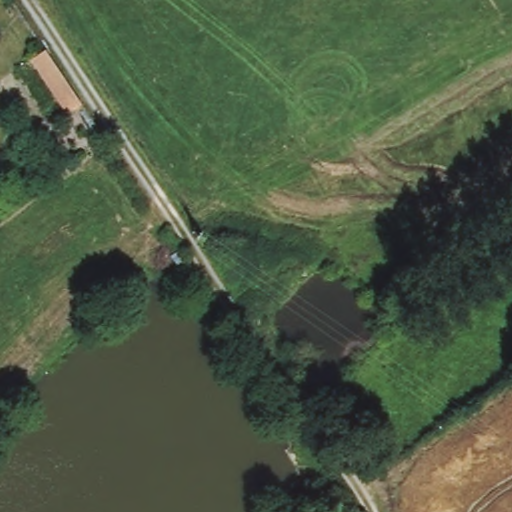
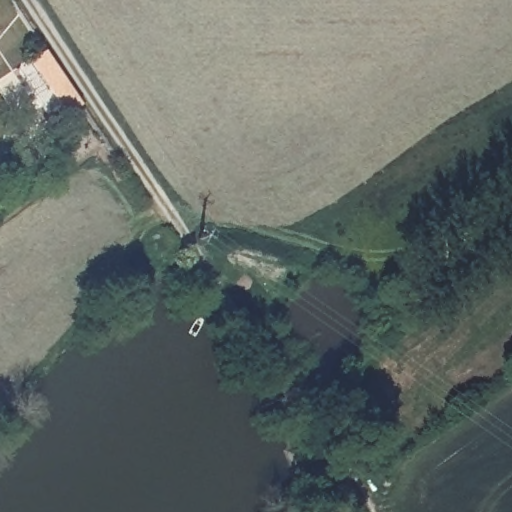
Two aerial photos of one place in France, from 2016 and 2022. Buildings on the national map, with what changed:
unchanged [(44,44),(80,101),(65,111),(29,54),(44,44)]

